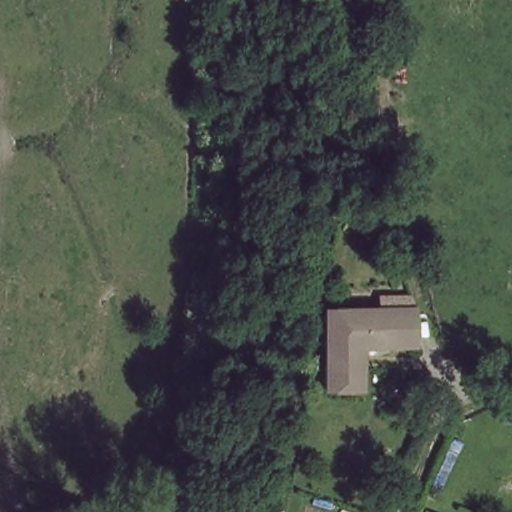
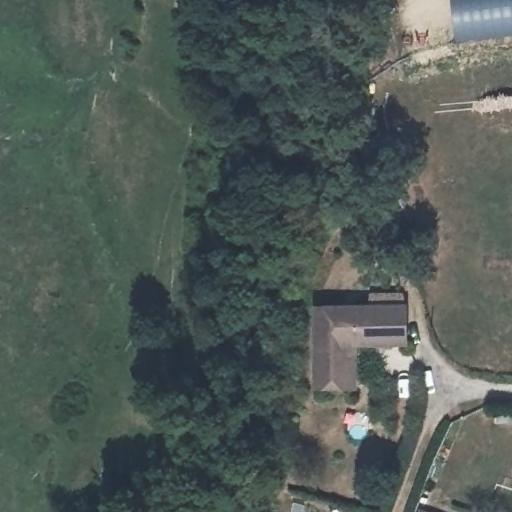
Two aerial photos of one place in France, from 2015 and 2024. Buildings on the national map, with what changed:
new [(463,10),(493,0),(512,0),(512,37),(455,43),(453,21),(464,19),(463,10)]
unchanged [(394,352),(359,352),(358,387),(321,387),(321,314),(387,310),(386,296),(409,295),(421,351),(394,352)]

